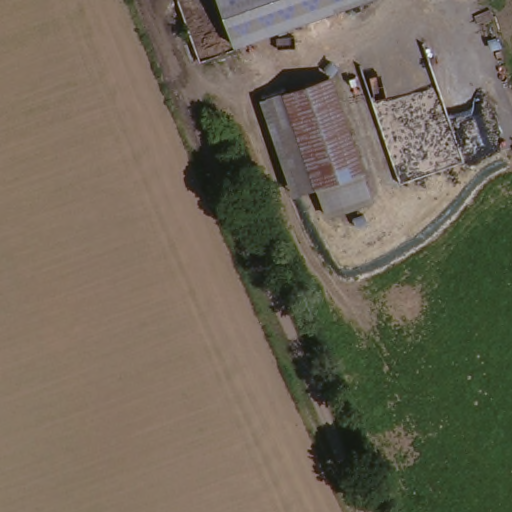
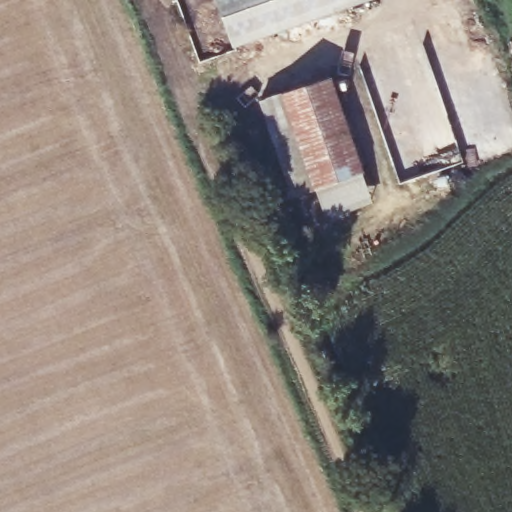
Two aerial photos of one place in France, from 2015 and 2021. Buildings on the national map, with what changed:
unchanged [(236,47),(219,0),(367,0),(236,47)]
unchanged [(328,84),(380,199),(331,215),(286,99),(328,84)]

